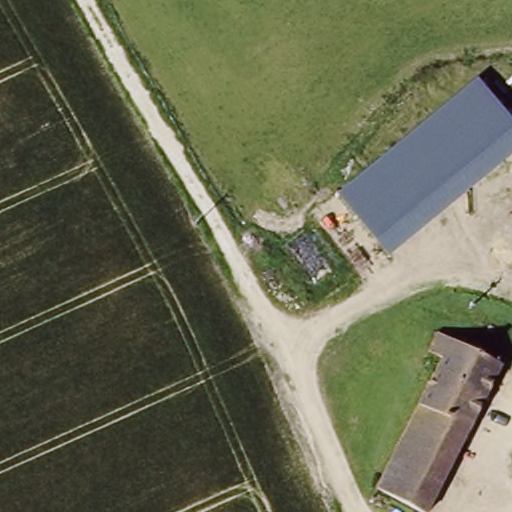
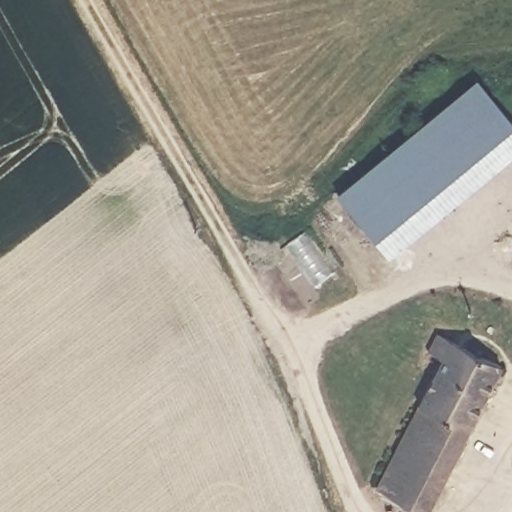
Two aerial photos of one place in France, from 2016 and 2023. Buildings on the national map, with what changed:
unchanged [(512,120),(512,155),(389,257),(337,194),(477,78),(512,120)]
unchanged [(437,361),(420,352),(429,333),(459,345),(462,339),(479,348),(475,356),(497,367),(419,512),(370,487),(437,361)]

